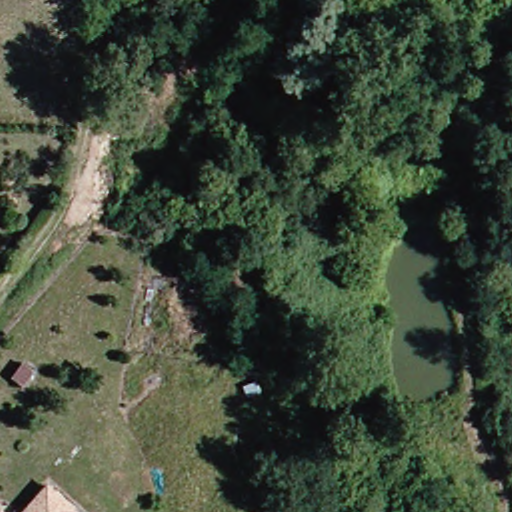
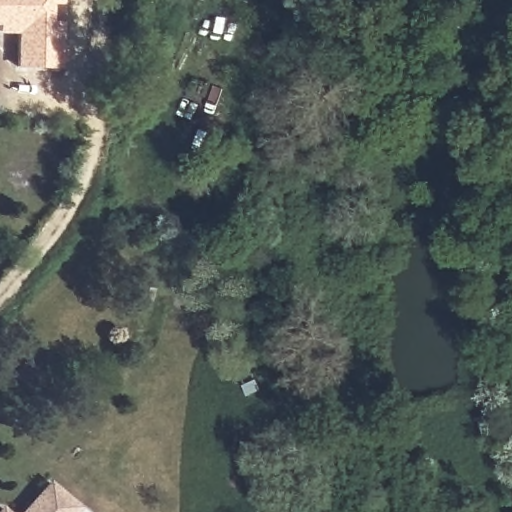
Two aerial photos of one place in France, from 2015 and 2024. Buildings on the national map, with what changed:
new [(50,5),(50,22),(64,23),(60,71),(16,69),(16,34),(0,33),(0,0),(62,0),(62,6),(50,5)]
unchanged [(40,483),(67,507),(62,512),(13,512),(40,483)]

